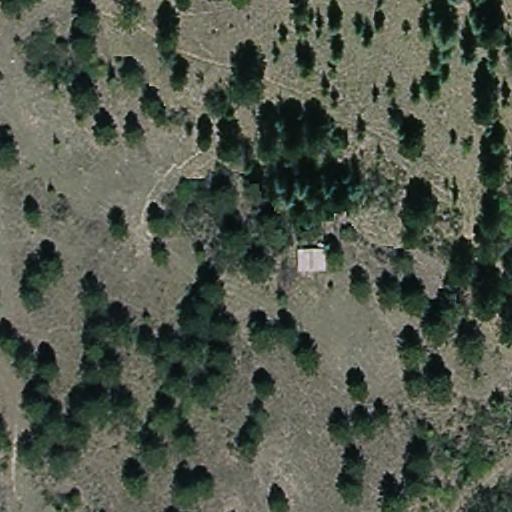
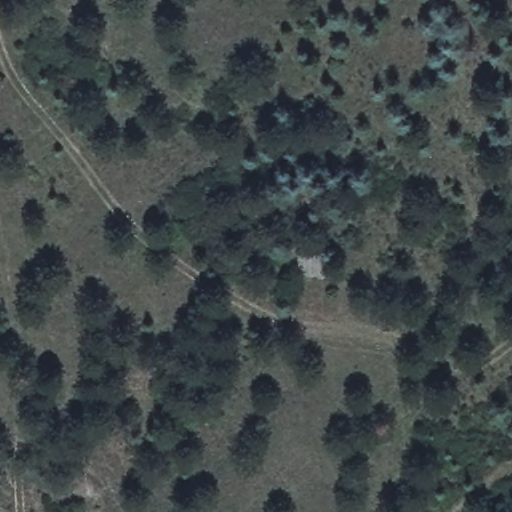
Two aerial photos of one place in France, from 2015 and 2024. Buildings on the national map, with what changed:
unchanged [(295,256),(328,254),(330,280),(296,280),(295,256)]

